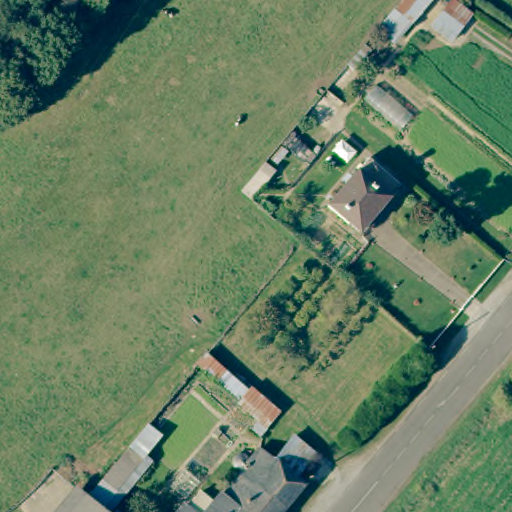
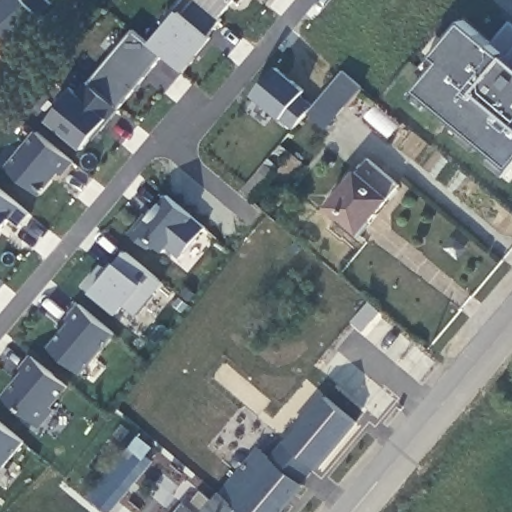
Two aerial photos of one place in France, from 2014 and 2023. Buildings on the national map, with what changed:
new [(133,29),(150,43),(176,11),(185,0),(236,0),(209,33),(215,37),(187,70),(161,52),(117,109),(90,85),(133,29)]
new [(244,1),(242,0),(244,0),(244,1)]
demolished [(396,0),(439,0),(447,7),(432,27),(430,31),(414,21),(393,43),(370,30),(396,0)]
new [(442,63),(435,57),(464,22),(512,62),(512,167),(420,90),(442,63)]
new [(301,91),(297,95),(310,106),(290,129),(249,95),(273,67),(301,91)]
new [(345,73),(362,87),(326,129),(310,114),(345,73)]
new [(117,109),(95,135),(93,134),(80,149),(46,121),(60,106),(55,102),(68,87),(75,93),(85,82),(89,84),(117,109)]
new [(37,132),(73,161),(62,175),(59,172),(39,195),(7,168),(37,132)]
unchanged [(388,189),(375,205),(379,208),(354,238),(323,212),(362,167),(388,189)]
unchanged [(267,176),(249,199),(240,192),(258,169),(267,176)]
new [(20,227),(10,219),(0,232),(0,189),(30,214),(20,227)]
new [(184,256),(171,244),(164,253),(155,246),(151,251),(130,234),(162,193),(205,226),(184,256)]
new [(101,265),(109,272),(126,252),(162,282),(135,314),(124,305),(117,313),(85,286),(101,265)]
new [(66,319),(63,316),(75,301),(111,330),(77,371),(45,344),(66,319)]
demolished [(241,389),(245,384),(277,411),(262,427),(195,367),(204,354),(241,389)]
new [(25,372),(21,369),(32,356),(68,386),(50,407),(54,410),(40,427),(4,397),(25,372)]
new [(0,471),(0,421),(24,441),(0,471)]
unchanged [(312,449),(291,476),(301,484),(279,512),(240,512),(238,510),(232,509),(217,496),(237,470),(232,465),(231,460),(232,456),(237,453),(242,453),(249,458),(256,448),(275,462),(296,436),(312,449)]
unchanged [(136,461),(113,490),(100,479),(124,451),(136,461)]
unchanged [(86,500),(100,512),(55,512),(73,490),(86,500)]
unchanged [(185,511),(197,495),(210,505),(217,496),(232,509),(238,510),(240,512),(178,512),(181,508),(185,511)]

